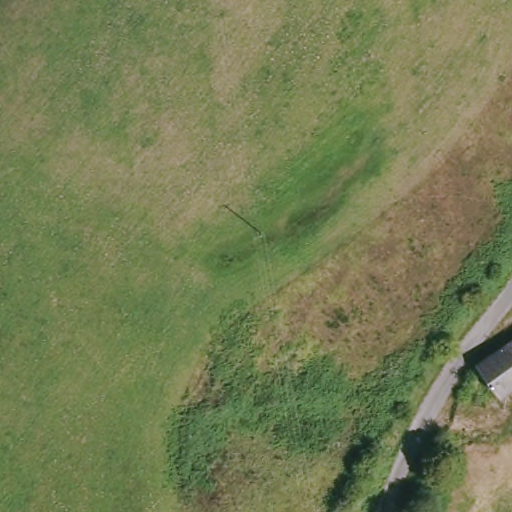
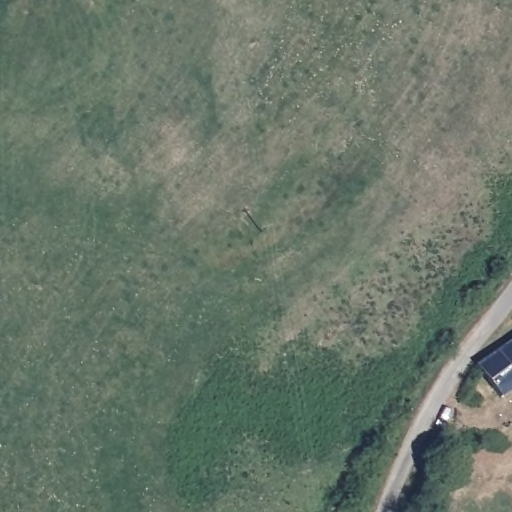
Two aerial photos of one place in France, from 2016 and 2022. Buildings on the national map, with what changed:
unchanged [(482,369),(512,341),(512,394),(505,400),(482,369)]

